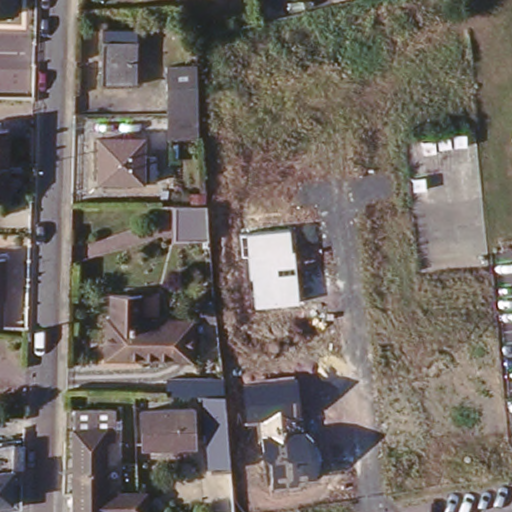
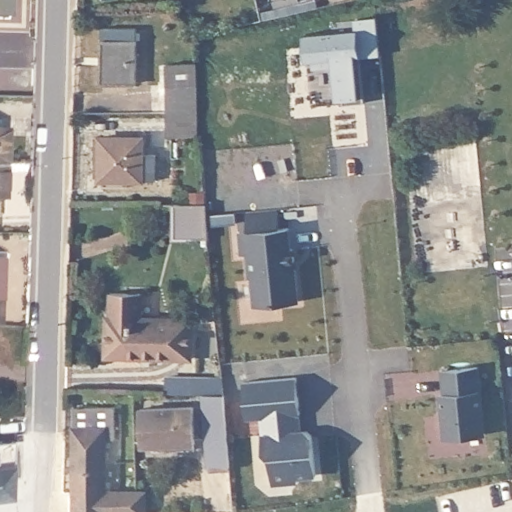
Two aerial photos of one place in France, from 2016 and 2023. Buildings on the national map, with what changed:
unchanged [(11,9),(0,8),(0,0),(11,0),(11,9)]
new [(359,25),(358,15),(379,14),(380,49),(361,50),(365,98),(345,100),(342,62),(314,64),(314,55),(307,55),(304,30),(359,25)]
unchanged [(134,32),(131,75),(98,74),(99,31),(134,32)]
unchanged [(168,64),(196,64),(200,112),(199,136),(170,135),(170,110),(168,64)]
unchanged [(0,159),(0,121),(9,122),(8,159),(0,159)]
unchanged [(139,141),(139,157),(153,158),(151,182),(96,181),(96,140),(139,141)]
unchanged [(7,176),(9,176),(9,183),(6,185),(6,192),(0,192),(0,159),(8,159),(7,176)]
unchanged [(210,184),(210,196),(200,195),(200,184),(210,184)]
unchanged [(213,199),(212,234),(176,233),(177,198),(213,199)]
unchanged [(290,229),(292,252),(295,252),(299,305),(256,307),(253,279),(250,280),(248,256),(242,257),(240,235),(290,229)]
unchanged [(4,252),(2,299),(0,298),(0,252),(4,252)]
unchanged [(188,326),(187,364),(105,360),(106,323),(109,323),(111,304),(111,296),(143,298),(143,305),(142,324),(188,326)]
unchanged [(212,310),(212,328),(198,327),(197,311),(212,310)]
unchanged [(214,330),(215,340),(209,340),(208,331),(214,330)]
new [(441,393),(445,393),(444,368),(480,365),(486,434),(446,436),(441,393)]
unchanged [(296,379),(303,429),(312,436),(317,478),(298,480),(298,486),(272,487),(269,464),(262,459),(258,422),(246,422),(243,384),(296,379)]
unchanged [(230,472),(230,473),(210,474),(203,397),(166,396),(167,381),(222,382),(224,398),(225,413),(230,472)]
unchanged [(70,493),(71,489),(72,488),(73,407),(113,408),(113,429),(105,429),(104,493),(134,494),(144,494),(144,512),(72,512),(72,494),(70,493)]
unchanged [(192,410),(192,446),(142,446),(142,410),(192,410)]
unchanged [(15,437),(13,495),(0,497),(0,439),(15,437)]
demolished [(289,487),(290,497),(279,497),(278,488),(289,487)]

